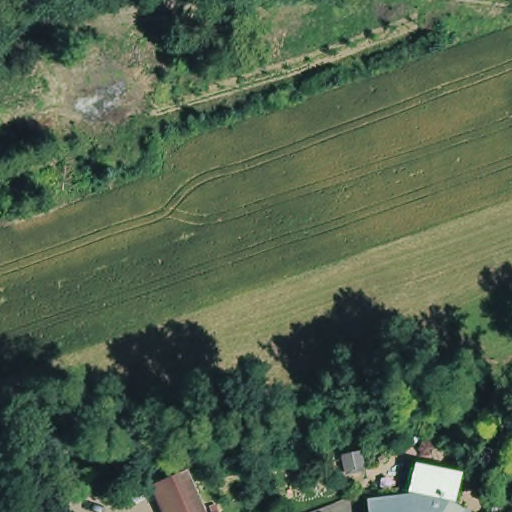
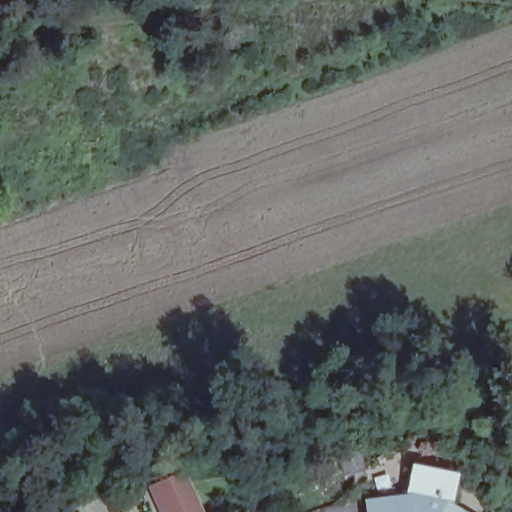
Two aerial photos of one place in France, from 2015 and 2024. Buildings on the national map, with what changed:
unchanged [(154,493),(151,484),(184,469),(188,478),(204,512),(163,512),(154,493)]
unchanged [(450,506),(412,498),(410,498),(416,469),(458,477),(452,507),(450,506)]
unchanged [(412,498),(450,506),(452,507),(461,512),(371,512),(369,503),(410,498),(412,498)]

